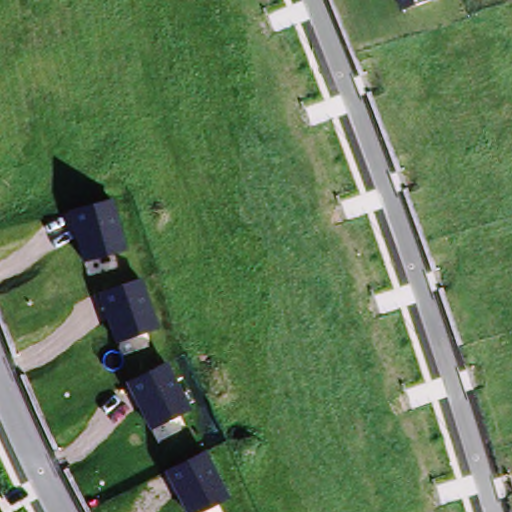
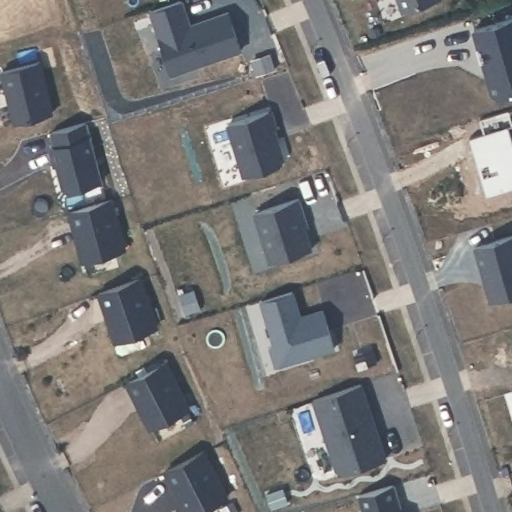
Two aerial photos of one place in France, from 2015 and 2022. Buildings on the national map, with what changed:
unchanged [(398,0),(437,0),(403,13),(398,0)]
new [(183,4),(189,19),(186,20),(189,30),(230,16),(242,54),(174,77),(152,14),(183,4)]
new [(474,41),(512,29),(512,103),(496,109),(474,41)]
new [(40,65),(54,115),(16,125),(2,75),(40,65)]
new [(272,112),(277,128),(275,129),(285,161),(282,167),(247,179),(230,126),(272,112)]
new [(57,149),(53,134),(87,125),(103,185),(75,193),(65,187),(59,168),(57,168),(52,151),(57,149)]
unchanged [(127,251),(82,264),(69,210),(114,197),(127,251)]
new [(300,201),(304,218),(302,218),(310,253),(268,263),(255,212),(300,201)]
new [(487,253),(512,245),(512,306),(502,310),(487,253)]
unchanged [(160,328),(114,344),(97,291),(144,277),(160,328)]
new [(262,302),(294,293),(299,309),(295,309),(299,319),(324,312),(335,350),(281,366),(277,368),(271,348),(275,347),(262,302)]
unchanged [(192,409),(149,431),(125,382),(167,362),(192,409)]
new [(362,385),(368,402),(366,403),(369,412),(370,411),(387,460),(340,476),(315,401),(362,385)]
unchanged [(230,496),(202,512),(185,512),(163,471),(205,451),(230,496)]
new [(394,486),(402,512),(359,512),(355,498),(394,486)]

